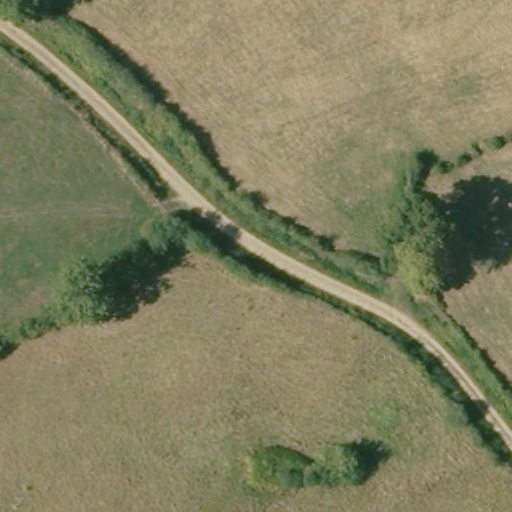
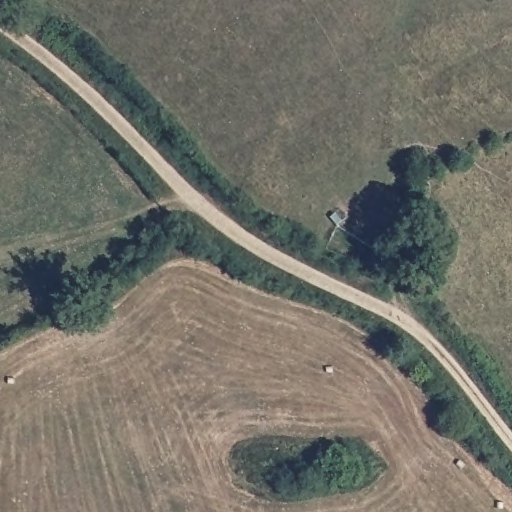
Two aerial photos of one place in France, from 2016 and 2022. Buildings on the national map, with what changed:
[]

